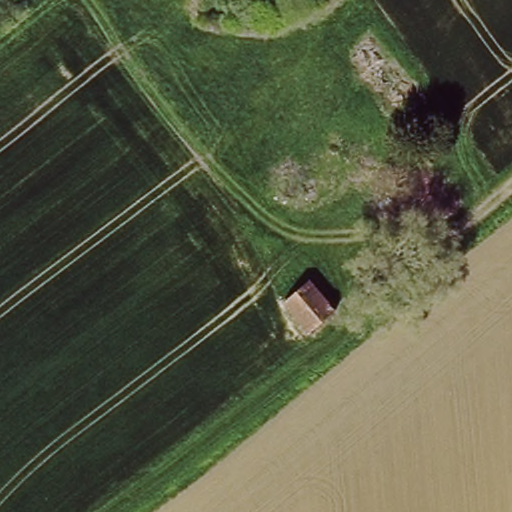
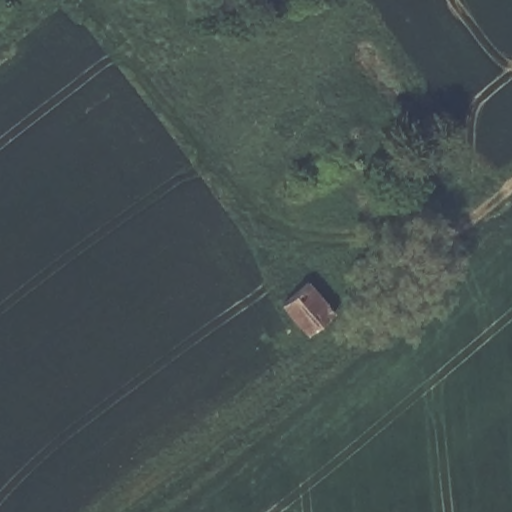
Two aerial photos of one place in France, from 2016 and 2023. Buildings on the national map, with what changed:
unchanged [(420,168),(443,206),(420,224),(391,188),(420,168)]
unchanged [(310,281),(336,313),(309,337),(280,306),(310,281)]

